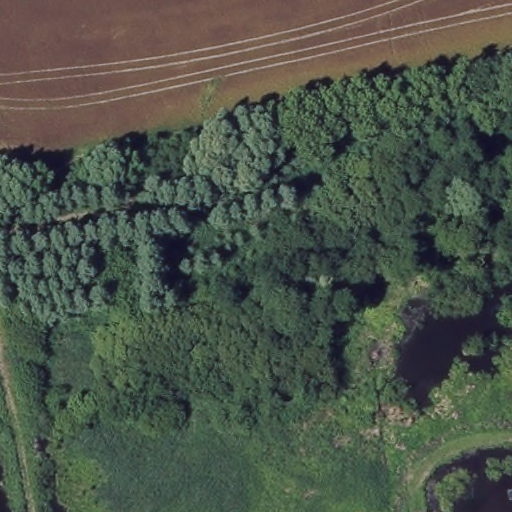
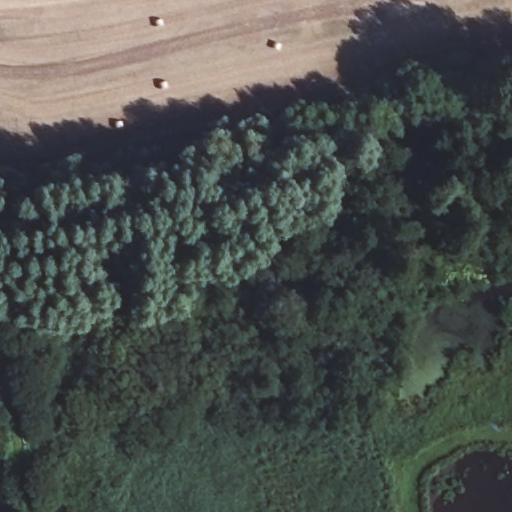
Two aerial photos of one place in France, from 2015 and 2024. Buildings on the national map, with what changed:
[]

